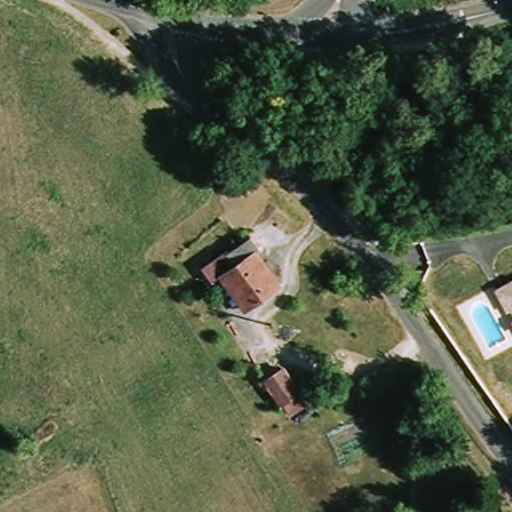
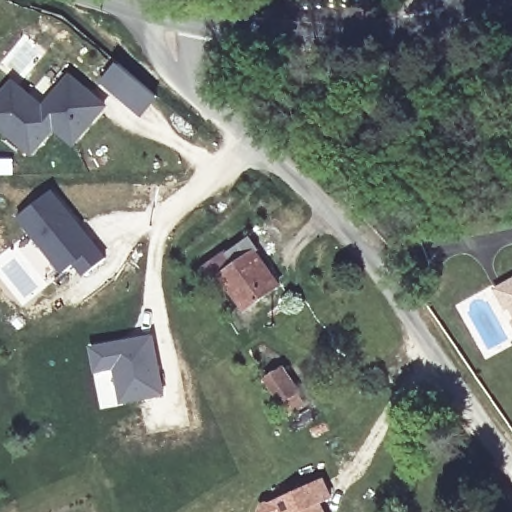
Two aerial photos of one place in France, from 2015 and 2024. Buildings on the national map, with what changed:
new [(142,114),(122,97),(104,82),(119,64),(137,80),(157,96),(142,114)]
new [(70,77),(99,101),(105,106),(100,112),(73,143),(54,127),(32,153),(0,127),(0,98),(14,82),(44,108),(70,77)]
new [(77,222),(80,227),(105,258),(84,276),(75,263),(63,273),(18,217),(52,190),(77,222)]
unchanged [(251,237),(265,256),(260,260),(280,286),(250,309),(225,277),(222,278),(215,282),(205,269),(229,251),(232,255),(251,237)]
unchanged [(500,289),(512,282),(512,309),(500,289)]
new [(134,340),(152,337),(162,394),(122,402),(115,367),(97,370),(92,348),(122,342),(134,340)]
unchanged [(285,411),(269,382),(284,373),(300,402),(285,411)]
new [(263,506),(322,479),(331,498),(320,503),(323,512),(261,512),(263,506)]

